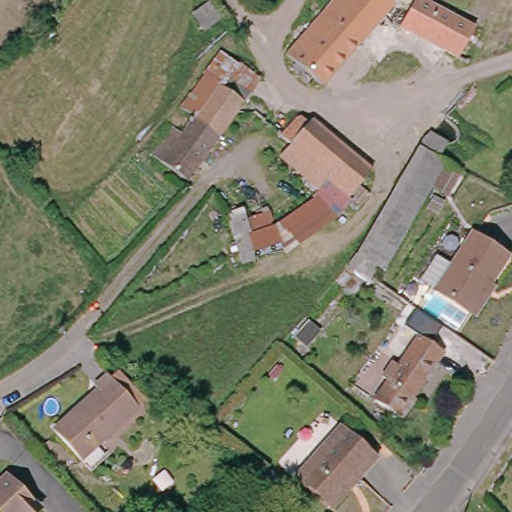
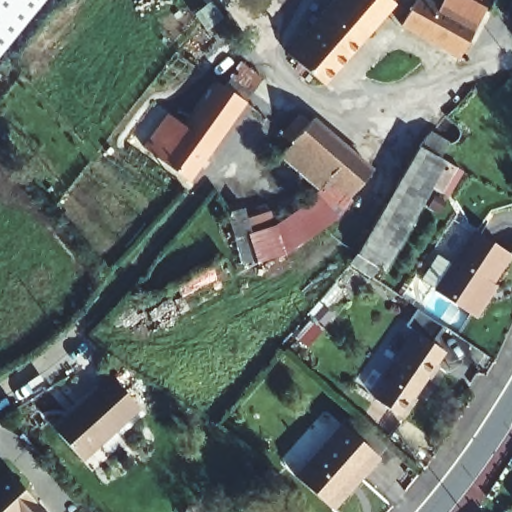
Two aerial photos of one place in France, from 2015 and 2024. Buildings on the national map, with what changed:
new [(44,0),(0,54),(0,0),(44,0)]
unchanged [(318,81),(282,50),(327,0),(386,0),(388,2),(318,81)]
unchanged [(400,21),(412,0),(422,0),(474,29),(458,54),(400,21)]
unchanged [(149,153),(153,148),(169,124),(179,131),(191,115),(180,108),(179,108),(176,105),(202,72),(204,74),(215,81),(221,85),(227,77),(247,91),(185,179),(184,178),(149,153)]
unchanged [(459,94),(467,85),(479,98),(458,123),(444,110),(459,94)]
unchanged [(306,205),(312,198),(289,179),(296,172),(289,165),(274,152),(271,149),(291,129),(299,135),(301,133),(315,119),(341,143),(328,156),(361,185),(363,187),(353,198),(348,203),(335,217),(328,224),(325,222),(306,205)]
unchanged [(429,134),(430,132),(444,143),(437,155),(446,160),(456,166),(463,169),(456,179),(451,176),(441,192),(433,185),(377,279),(349,263),(351,263),(419,145),(429,134)]
unchanged [(241,204),(244,214),(268,204),(279,224),(306,205),(325,222),(281,255),(236,264),(217,219),(241,204)]
unchanged [(508,258),(469,315),(436,293),(419,282),(424,275),(426,277),(434,264),(432,263),(437,256),(453,267),(474,235),(508,258)]
unchanged [(397,313),(416,325),(411,333),(392,321),(397,313)]
unchanged [(386,379),(379,373),(389,359),(394,363),(415,334),(439,353),(432,363),(434,364),(424,379),(423,378),(409,398),(411,400),(398,419),(370,400),(386,379)]
unchanged [(73,413),(94,391),(91,388),(103,374),(137,407),(80,464),(55,440),(50,435),(73,413)]
unchanged [(337,423),(374,453),(328,506),(291,475),(337,423)]
unchanged [(1,463),(33,496),(18,510),(20,512),(0,512),(0,465),(1,463)]
unchanged [(293,508),(296,512),(288,512),(293,508)]

